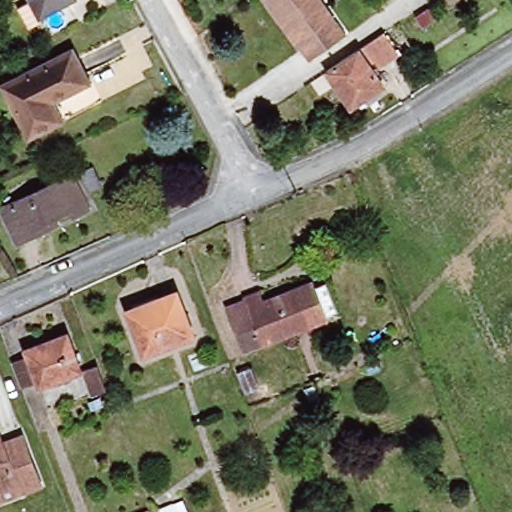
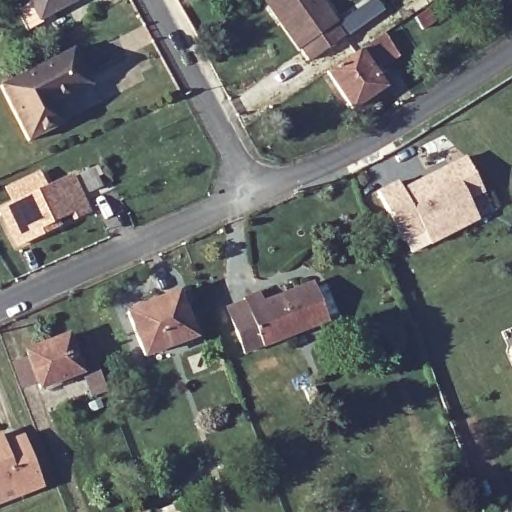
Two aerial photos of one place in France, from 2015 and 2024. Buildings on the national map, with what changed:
unchanged [(44,23),(32,30),(18,6),(29,0),(76,0),(42,19),(44,23)]
unchanged [(299,47),(266,0),(321,0),(345,34),(312,56),(303,44),(299,47)]
unchanged [(382,41),(393,58),(371,72),(385,91),(353,113),(328,76),(382,41)]
unchanged [(75,50),(92,85),(56,103),(66,122),(30,141),(2,86),(75,50)]
new [(461,232),(432,246),(425,234),(405,243),(381,194),(398,186),(402,194),(467,161),(484,196),(471,202),(482,222),(461,232)]
unchanged [(88,175),(96,191),(85,196),(77,179),(88,175)]
unchanged [(55,229),(13,248),(0,219),(0,214),(68,183),(83,216),(71,222),(70,218),(53,226),(55,229)]
unchanged [(259,305),(309,287),(311,293),(322,289),(333,317),(322,321),(324,326),(242,356),(225,311),(242,304),(241,303),(255,297),(259,305)]
unchanged [(130,311),(178,293),(194,336),(145,354),(130,311)]
unchanged [(83,370),(42,386),(28,350),(70,335),(83,370)]
unchanged [(512,360),(507,349),(512,347),(512,360)]
unchanged [(2,436),(5,445),(24,438),(42,485),(22,493),(16,479),(0,484),(0,437),(2,436)]
unchanged [(16,479),(22,493),(0,501),(0,484),(16,479)]

